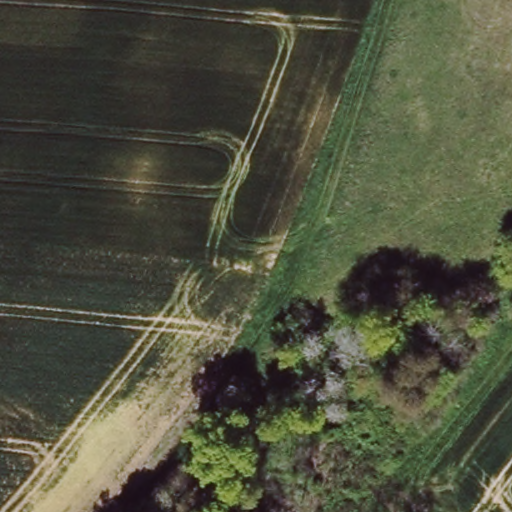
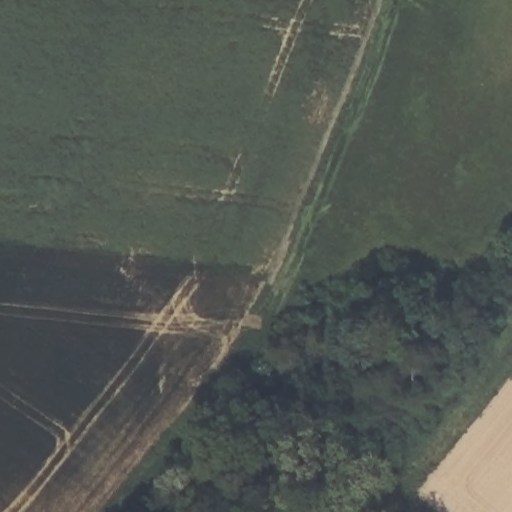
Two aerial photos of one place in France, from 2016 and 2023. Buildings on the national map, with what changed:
[]

